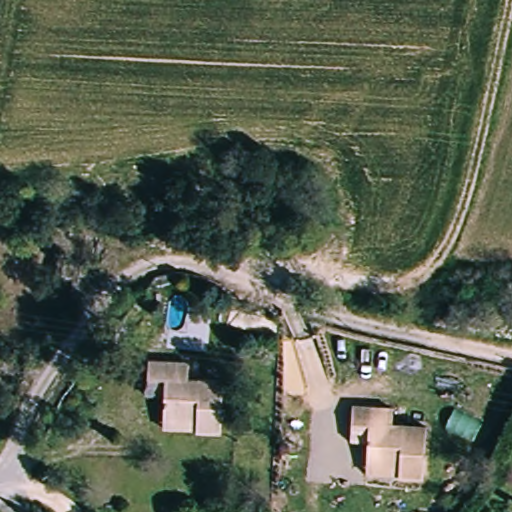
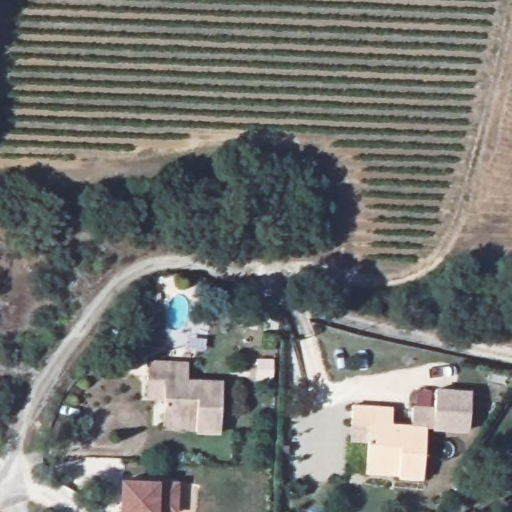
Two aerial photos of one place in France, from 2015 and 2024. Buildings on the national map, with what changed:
unchanged [(156,414),(156,395),(138,395),(138,377),(139,362),(183,362),(184,379),(219,379),(218,431),(193,431),(155,430),(156,414)]
new [(469,431),(424,428),(424,425),(411,425),(413,405),(416,405),(417,389),(431,390),(429,406),(434,407),(436,388),(471,390),(469,431)]
unchanged [(388,425),(424,425),(421,475),(396,475),(396,461),(362,460),(364,425),(346,425),(348,406),(389,408),(388,425)]
new [(118,512),(120,477),(159,479),(179,480),(178,512),(168,512),(158,511),(158,512),(118,512)]

